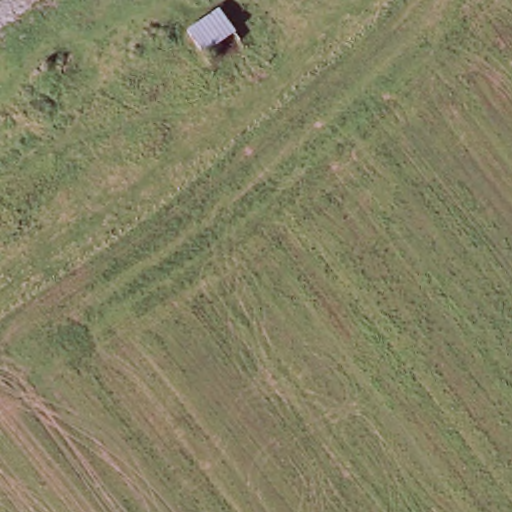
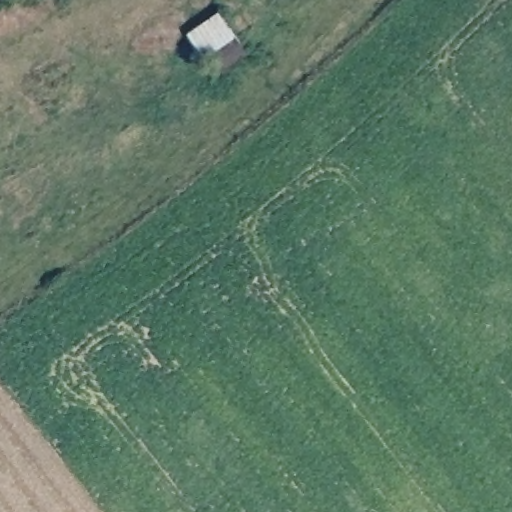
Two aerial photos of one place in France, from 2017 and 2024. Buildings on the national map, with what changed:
unchanged [(188,36),(220,14),(234,34),(201,53),(188,36)]

